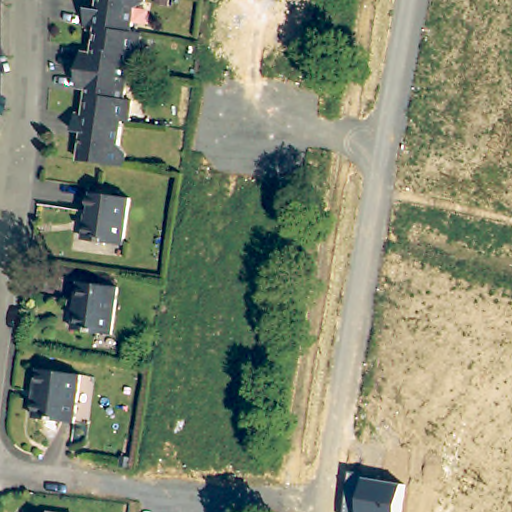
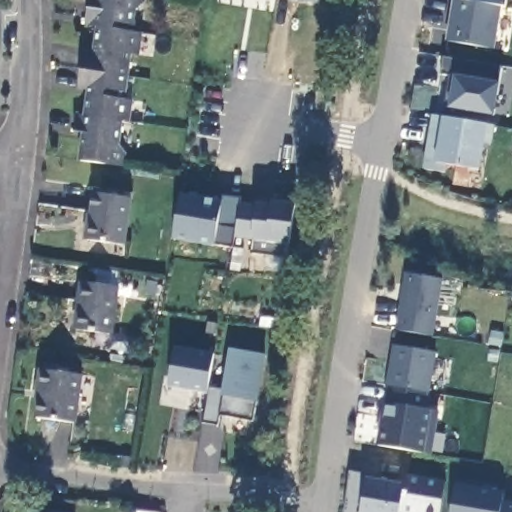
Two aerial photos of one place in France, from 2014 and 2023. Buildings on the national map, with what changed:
unchanged [(139,0),(130,6),(128,30),(137,31),(136,52),(127,52),(124,74),(109,72),(94,69),(79,67),(81,51),(96,53),(97,47),(91,45),(94,25),(82,22),(85,6),(100,8),(100,2),(97,1),(97,0),(139,0)]
new [(318,3),(302,0),(318,0),(318,3)]
new [(452,0),(458,0),(500,7),(494,48),(447,40),(452,0)]
new [(506,8),(500,7),(458,0),(507,0),(506,8)]
unchanged [(121,120),(118,145),(124,152),(123,165),(94,161),(78,158),(81,137),(85,137),(86,131),(71,128),(73,112),(83,113),(85,93),(91,93),(92,87),(78,84),(79,67),(94,69),(109,72),(124,74),(121,98),(129,99),(127,119),(127,120),(121,120)]
new [(423,169),(432,115),(444,117),(490,124),(496,125),(493,145),(486,144),(482,171),(450,165),(446,173),(423,169)]
unchanged [(126,195),(119,242),(84,236),(89,189),(126,195)]
new [(180,192),(222,199),(222,195),(238,198),(242,202),(236,236),(235,248),(174,238),(180,192)]
unchanged [(257,203),(273,204),(273,200),(296,204),(288,258),(252,253),(255,241),(252,240),(253,237),(236,236),(242,202),(257,203)]
new [(404,273),(442,279),(433,334),(396,329),(404,273)]
unchanged [(118,285),(111,332),(75,327),(82,279),(118,285)]
new [(393,344),(437,352),(428,408),(440,410),(433,453),(380,444),(393,344)]
new [(175,346),(214,353),(208,387),(222,390),(229,348),(266,354),(258,401),(255,420),(220,413),(218,424),(204,422),(209,394),(207,393),(169,386),(175,346)]
unchanged [(39,390),(41,373),(82,379),(75,425),(36,421),(41,391),(39,390)]
unchanged [(381,480),(405,485),(400,512),(345,512),(351,472),(382,477),(381,480)]
unchanged [(400,512),(405,485),(407,474),(446,481),(441,512),(400,512)]
new [(500,512),(452,512),(457,483),(503,491),(500,512)]
unchanged [(58,512),(51,512),(51,511),(58,512)]

